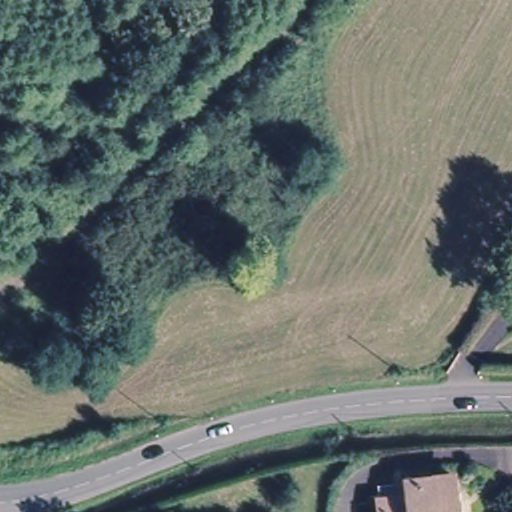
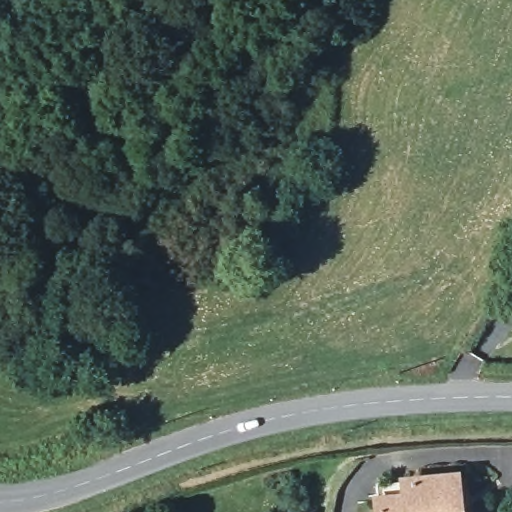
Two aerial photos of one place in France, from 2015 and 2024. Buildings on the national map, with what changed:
unchanged [(410,478),(463,473),(466,512),(383,512),(381,498),(410,495),(410,478)]

